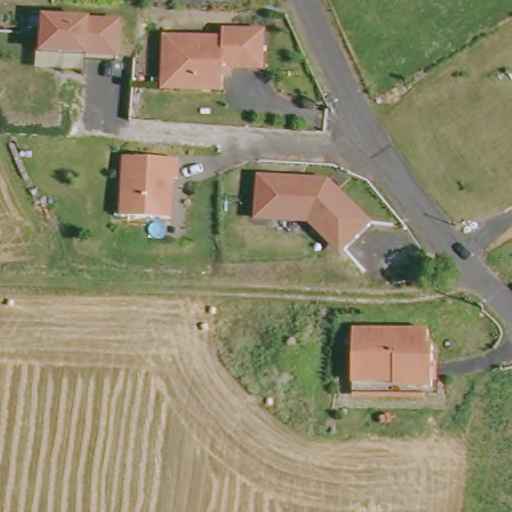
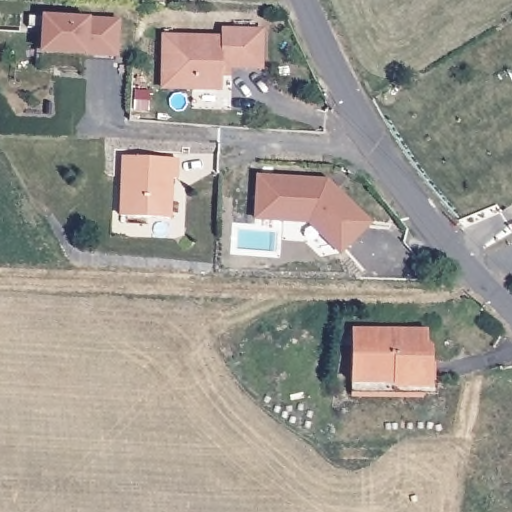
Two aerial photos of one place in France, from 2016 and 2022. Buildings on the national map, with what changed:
unchanged [(118,56),(88,55),(39,53),(40,17),(88,18),(120,19),(118,56)]
unchanged [(222,79),(221,94),(161,92),(163,41),(163,39),(221,41),(222,33),(262,34),(262,43),(261,72),(229,71),(229,80),(222,79)]
unchanged [(121,220),(124,160),(178,163),(177,182),(172,182),(170,223),(121,220)]
unchanged [(328,178),(371,224),(339,256),(305,224),(252,220),(254,173),(328,178)]
unchanged [(343,328),(418,328),(417,345),(422,345),(422,386),(398,386),(398,378),(385,379),(385,392),(342,392),(343,328)]

